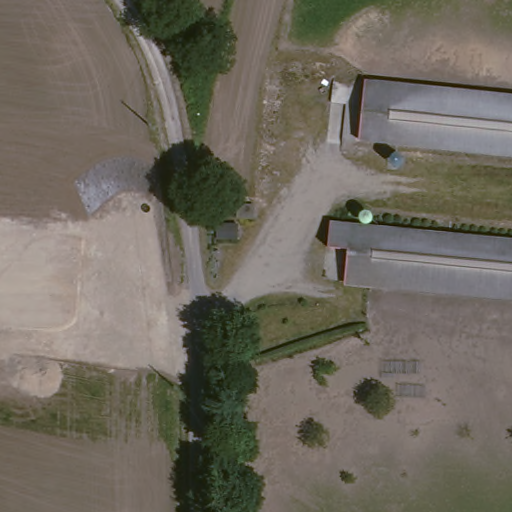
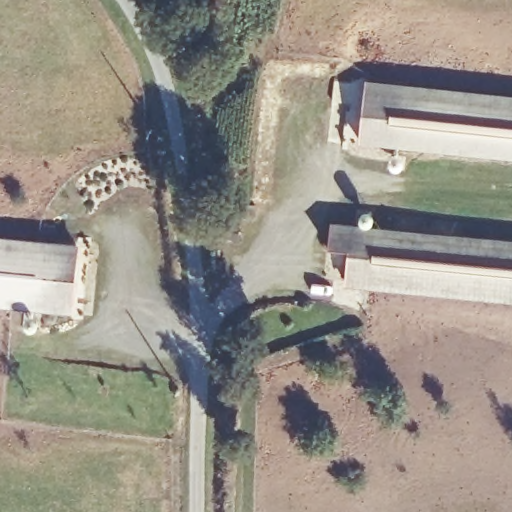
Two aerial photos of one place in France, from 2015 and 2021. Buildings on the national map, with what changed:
unchanged [(512,97),(512,151),(362,137),(367,84),(512,97)]
unchanged [(325,241),(327,221),(350,223),(512,238),(512,292),(345,277),(348,243),(325,241)]
new [(73,260),(68,316),(0,310),(0,254),(73,260)]

